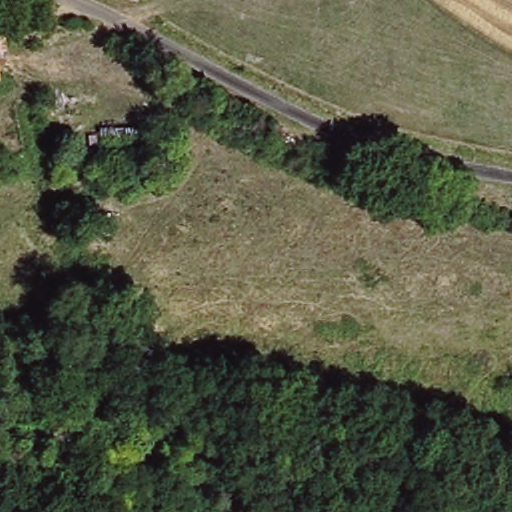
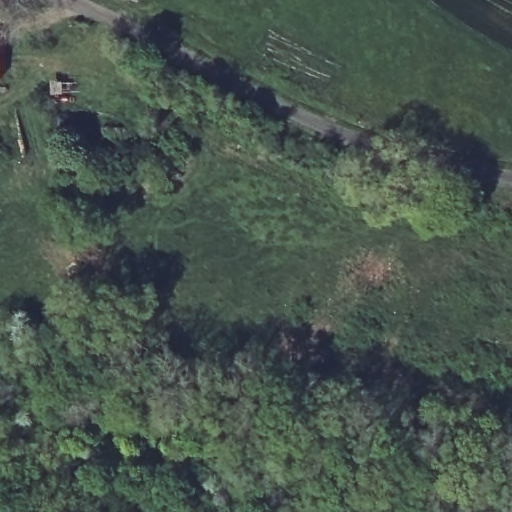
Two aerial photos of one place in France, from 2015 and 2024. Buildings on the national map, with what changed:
[]

